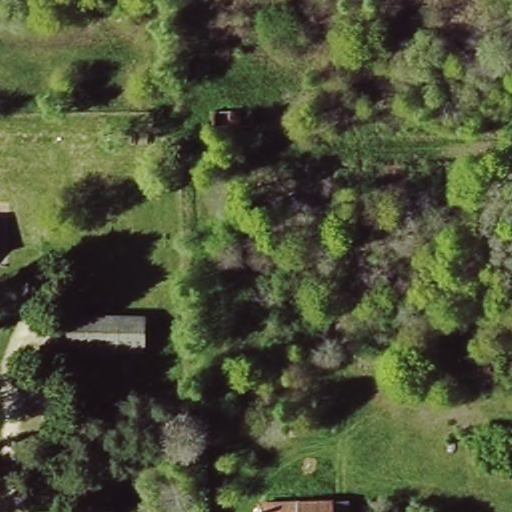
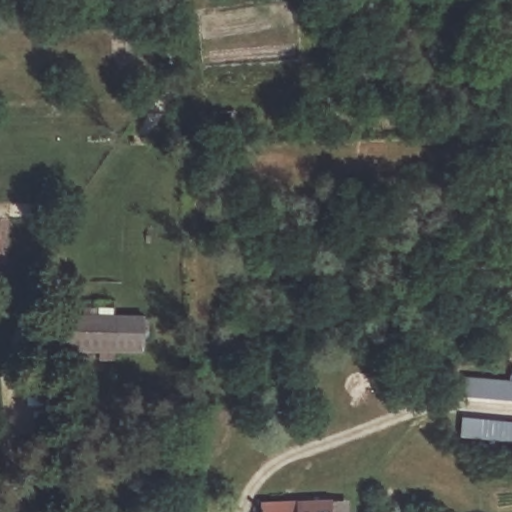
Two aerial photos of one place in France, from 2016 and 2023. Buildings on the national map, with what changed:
unchanged [(213,125),(213,104),(253,103),(252,127),(213,125)]
unchanged [(2,255),(0,255),(0,212),(2,212),(2,255)]
unchanged [(68,349),(70,309),(148,312),(147,349),(68,349)]
new [(460,395),(461,376),(512,378),(512,399),(460,395)]
new [(461,437),(463,416),(512,420),(512,440),(461,437)]
unchanged [(351,496),(352,512),(265,512),(265,497),(351,496)]

